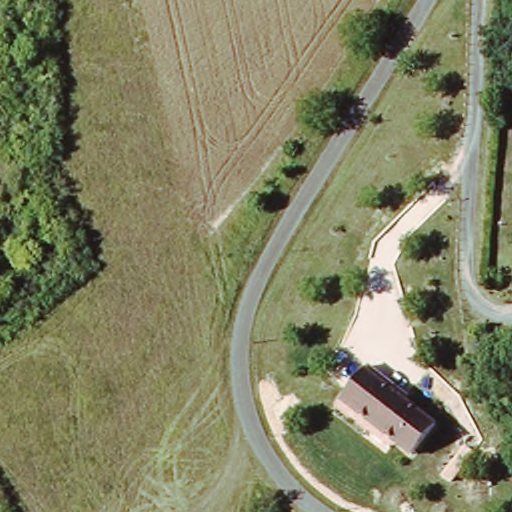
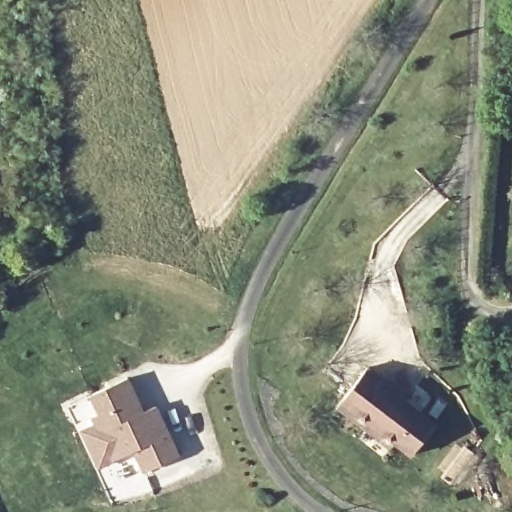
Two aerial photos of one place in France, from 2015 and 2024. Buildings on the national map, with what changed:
unchanged [(340,406),(367,364),(399,386),(410,393),(407,398),(440,420),(416,455),(384,432),(381,436),(371,428),(340,406)]
new [(94,420),(100,417),(91,398),(126,381),(142,415),(155,409),(179,459),(145,475),(135,454),(114,464),(100,470),(82,434),(97,428),(94,420)]

